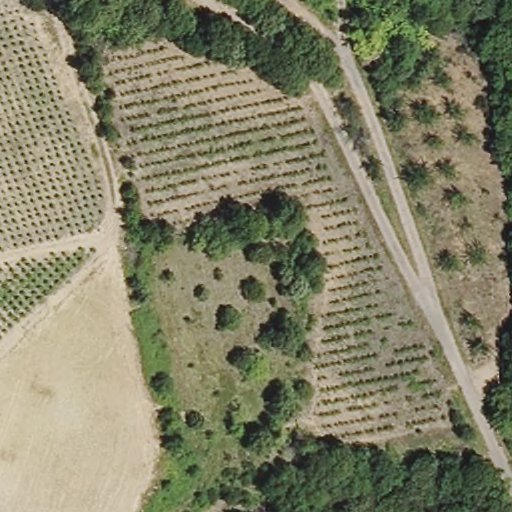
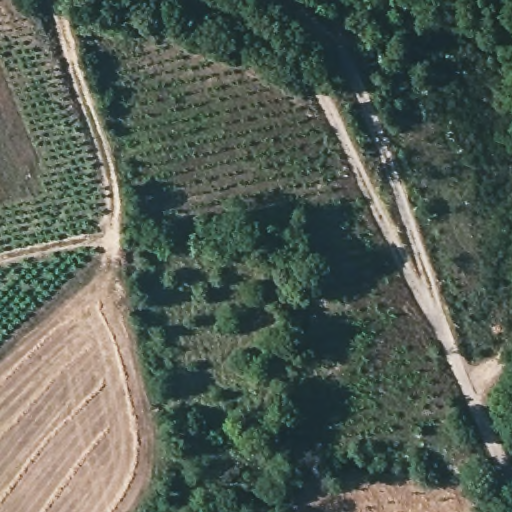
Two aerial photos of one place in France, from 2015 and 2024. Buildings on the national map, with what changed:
[]

